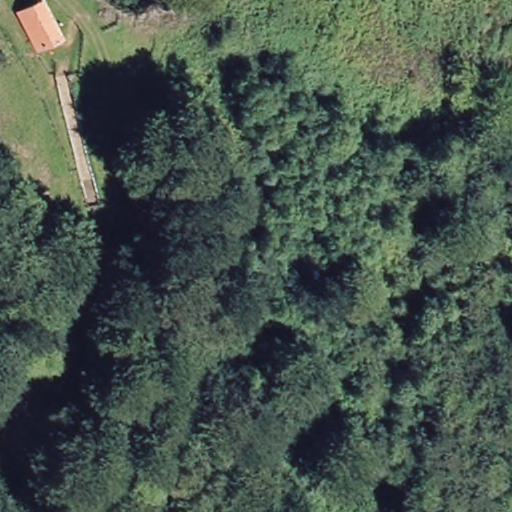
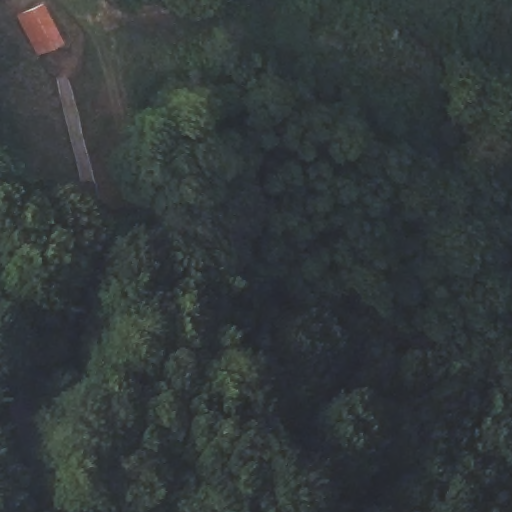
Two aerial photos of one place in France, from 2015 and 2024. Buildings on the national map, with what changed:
unchanged [(52,7),(60,25),(69,42),(43,54),(27,16),(52,7)]

